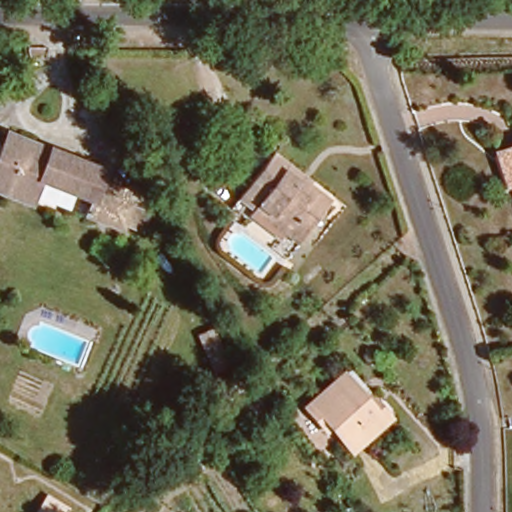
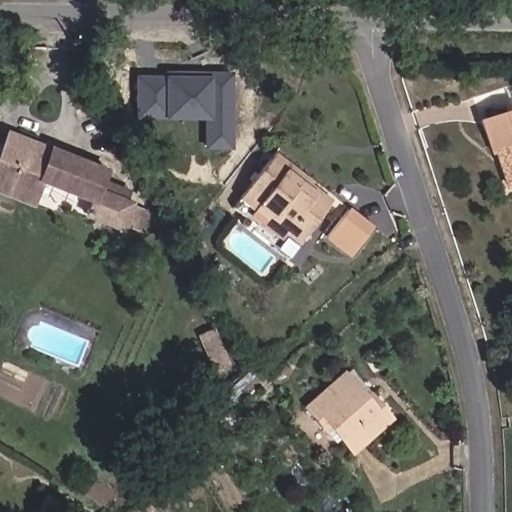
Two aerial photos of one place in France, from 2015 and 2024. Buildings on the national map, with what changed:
new [(201,149),(201,120),(132,119),(133,75),(162,75),(162,71),(230,72),(231,150),(201,149)]
unchanged [(125,210),(108,204),(105,212),(69,201),(72,190),(33,178),(25,199),(0,191),(0,128),(93,154),(92,165),(115,173),(113,183),(131,187),(125,210)]
unchanged [(497,179),(488,148),(512,141),(512,191),(506,177),(497,179)]
unchanged [(257,156),(291,181),(294,176),(319,196),(290,235),(273,223),(274,220),(232,189),(257,156)]
unchanged [(303,402),(341,368),(362,391),(370,400),(376,396),(390,412),(352,446),(330,421),(322,412),(316,417),(303,402)]
new [(68,509),(66,512),(39,512),(48,497),(68,509)]

